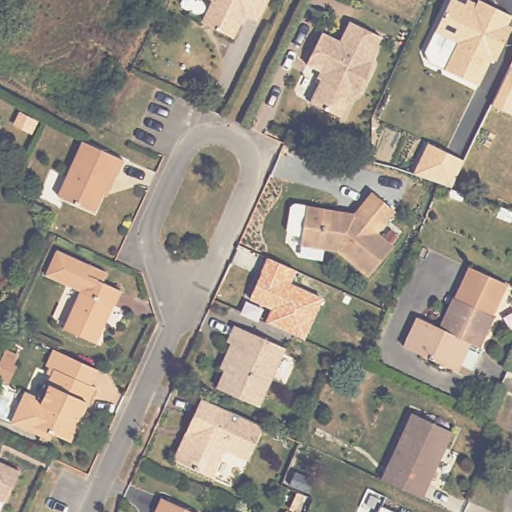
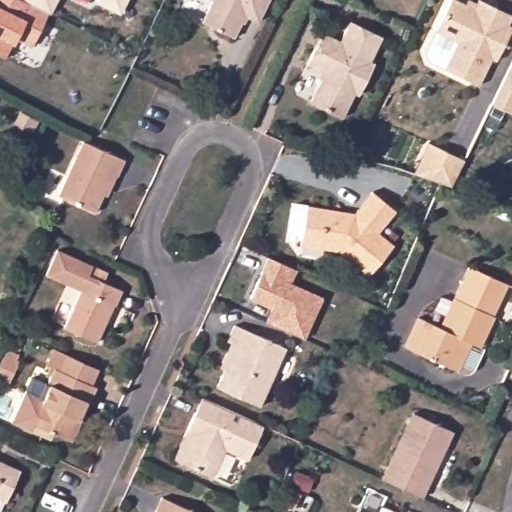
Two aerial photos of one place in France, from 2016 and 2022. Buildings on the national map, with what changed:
new [(51,13),(46,10),(31,47),(12,39),(3,59),(0,57),(0,0),(58,0),(51,13)]
new [(120,10),(100,0),(125,0),(120,10)]
unchanged [(260,23),(247,17),(236,39),(205,23),(215,1),(214,0),(270,0),(260,23)]
unchanged [(466,0),(468,0),(475,4),(476,0),(480,0),(512,15),(512,17),(508,25),(511,27),(495,63),(491,61),(480,85),(429,63),(425,54),(452,0),(456,0),(464,4),(466,0)]
unchanged [(377,36),(365,59),(371,62),(355,95),(350,92),(337,117),(307,102),(321,73),(303,64),(318,32),(337,40),(346,21),(377,36)]
unchanged [(492,105),(512,65),(512,109),(510,113),(492,105)]
unchanged [(110,175),(92,212),(55,195),(81,141),(122,161),(115,177),(110,175)]
unchanged [(465,160),(451,185),(413,174),(427,142),(465,160)]
unchanged [(385,224),(401,238),(374,268),(372,266),(346,242),(307,235),(308,225),(297,223),(295,219),(299,197),(302,194),(314,196),(362,204),(382,182),(393,192),(405,203),(385,224)]
unchanged [(229,294),(254,234),(271,241),(257,279),(265,282),(254,308),(229,294)]
unchanged [(90,276),(103,282),(99,291),(117,300),(110,315),(107,314),(97,334),(100,335),(91,353),(60,338),(77,300),(44,284),(55,260),(90,276)]
unchanged [(469,265),(506,282),(510,284),(480,347),(470,342),(456,370),(405,346),(418,317),(441,327),(467,268),(469,265)]
unchanged [(255,406),(213,386),(222,367),(216,365),(227,342),(224,339),(231,324),(282,347),(255,406)]
unchanged [(92,402),(90,401),(73,439),(38,424),(35,430),(15,421),(30,390),(47,399),(54,384),(51,383),(59,367),(64,369),(70,353),(85,359),(102,367),(95,384),(100,386),(92,402)]
unchanged [(185,425),(198,397),(258,425),(244,459),(220,449),(207,476),(175,460),(170,457),(185,425)]
unchanged [(410,417),(448,435),(419,500),(409,496),(380,483),(410,417)]
unchanged [(19,465),(5,495),(4,494),(0,502),(0,456),(19,465)]
unchanged [(160,512),(167,497),(200,512),(160,512)]
unchanged [(392,512),(388,512),(389,511),(392,512)]

